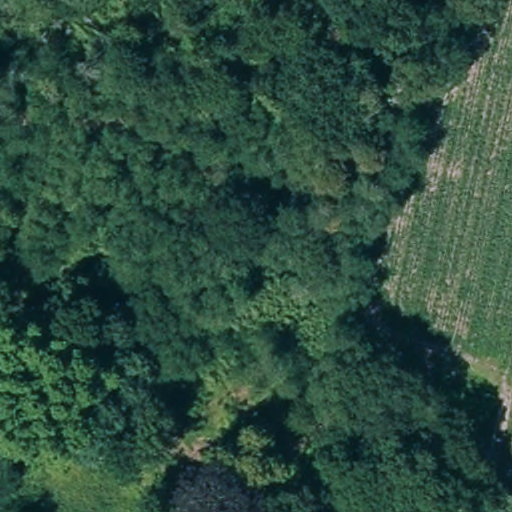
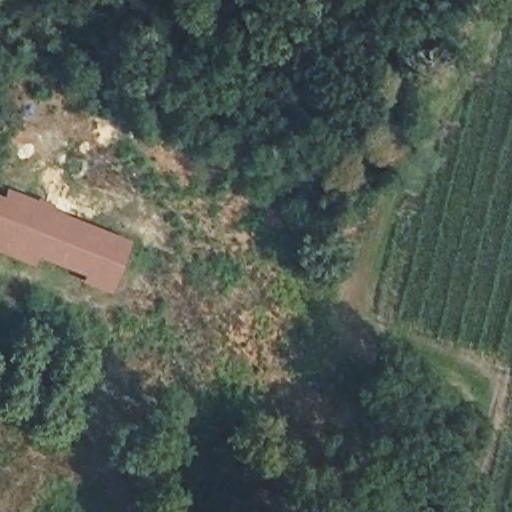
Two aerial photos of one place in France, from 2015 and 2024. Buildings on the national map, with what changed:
new [(6,188),(46,203),(81,220),(130,240),(120,264),(126,265),(113,296),(80,282),(82,277),(39,259),(35,268),(0,254),(0,196),(2,197),(6,188)]

